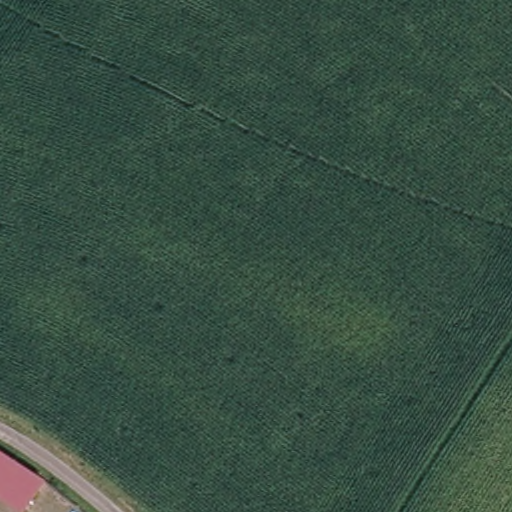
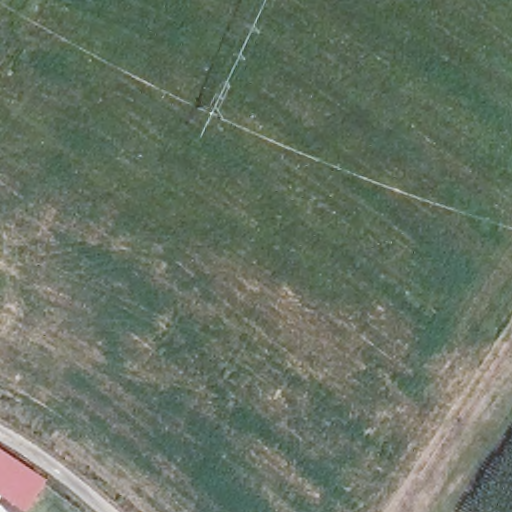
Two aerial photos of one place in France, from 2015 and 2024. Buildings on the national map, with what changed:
unchanged [(20,505),(7,497),(0,493),(0,451),(40,476),(20,505)]
unchanged [(7,497),(0,506),(0,493),(7,497)]

